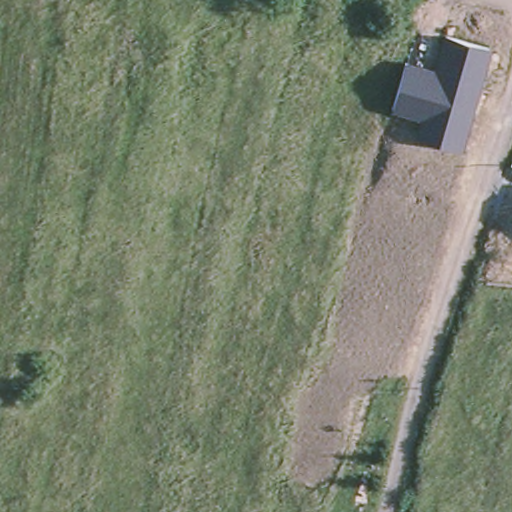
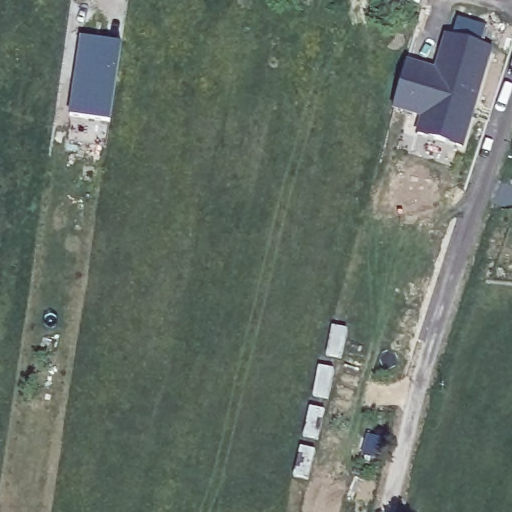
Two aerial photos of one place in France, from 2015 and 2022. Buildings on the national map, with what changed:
new [(109,122),(69,116),(80,37),(120,42),(109,122)]
unchanged [(461,148),(417,135),(422,117),(395,109),(392,108),(405,63),(407,64),(436,72),(446,37),(490,50),(475,102),(468,122),(461,148)]

